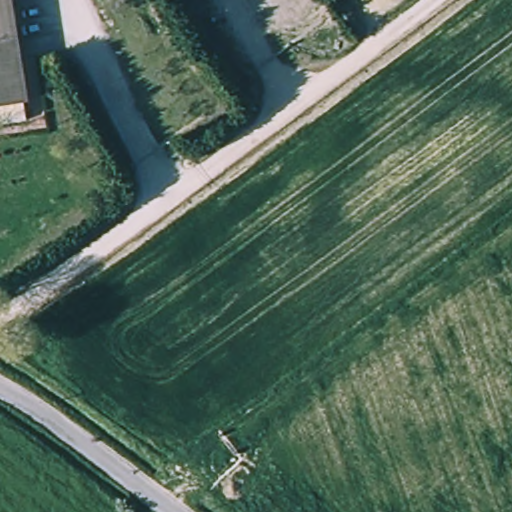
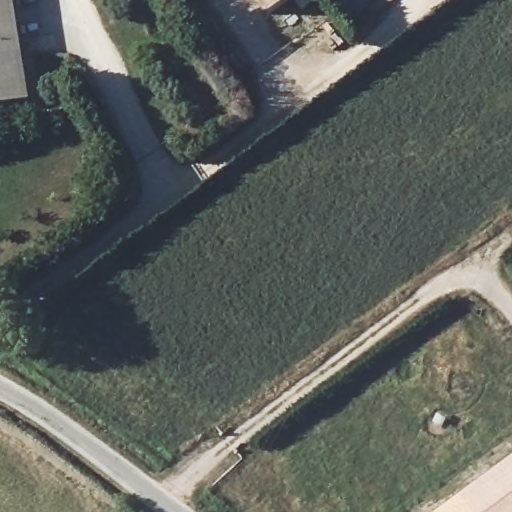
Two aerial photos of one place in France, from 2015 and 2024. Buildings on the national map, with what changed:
unchanged [(35,103),(13,109),(13,106),(0,24),(0,0),(18,0),(35,103)]
new [(268,15),(257,0),(289,0),(268,15)]
unchanged [(0,109),(0,24),(13,106),(0,109)]
new [(468,512),(457,497),(512,458),(512,512),(468,512)]
new [(468,512),(437,512),(457,497),(468,512)]

